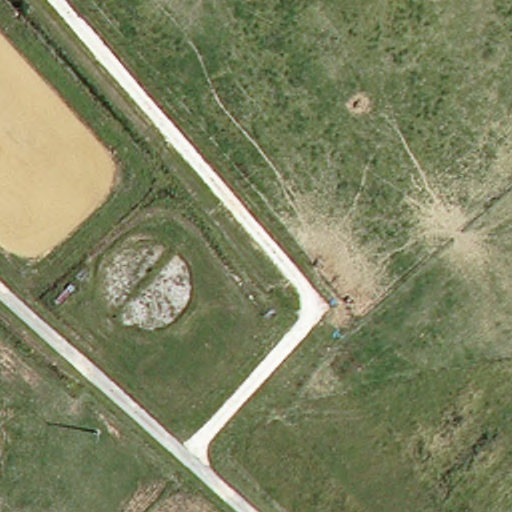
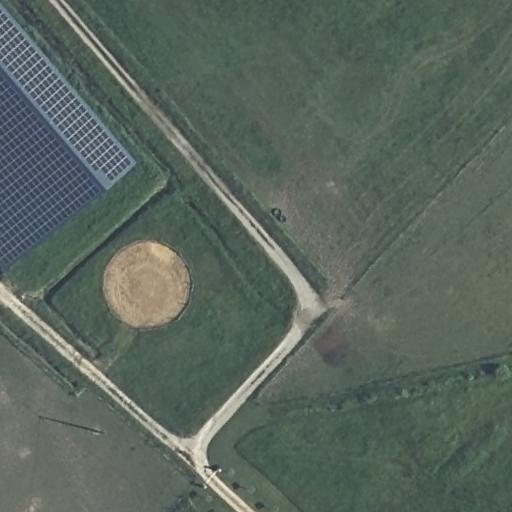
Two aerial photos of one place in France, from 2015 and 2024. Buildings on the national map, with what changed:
new [(0,14),(126,164),(0,268),(0,14)]

